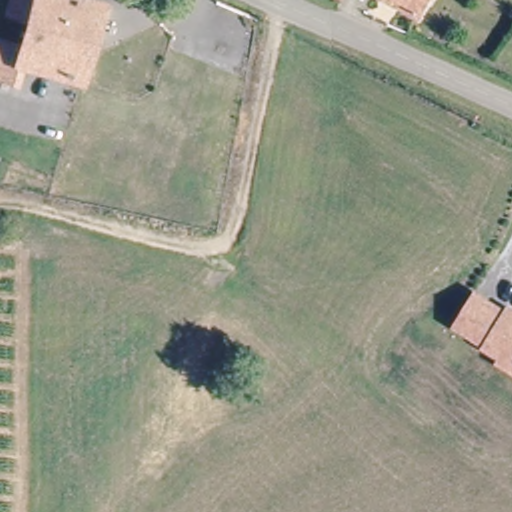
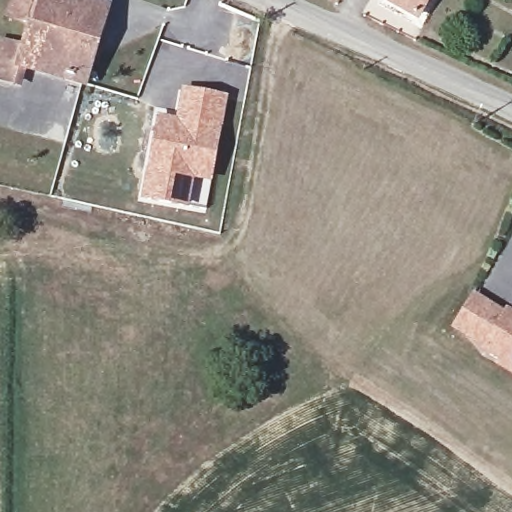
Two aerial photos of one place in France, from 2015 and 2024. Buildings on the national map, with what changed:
unchanged [(10,72),(0,69),(0,28),(23,37),(35,14),(10,1),(10,0),(87,0),(109,8),(78,80),(28,57),(17,53),(10,72)]
unchanged [(383,0),(424,0),(417,16),(383,0)]
new [(195,181),(189,209),(141,202),(157,115),(176,118),(182,88),(228,97),(211,182),(195,181)]
unchanged [(476,339),(477,336),(463,328),(483,296),(498,306),(500,303),(512,312),(512,363),(493,350),(476,339)]

